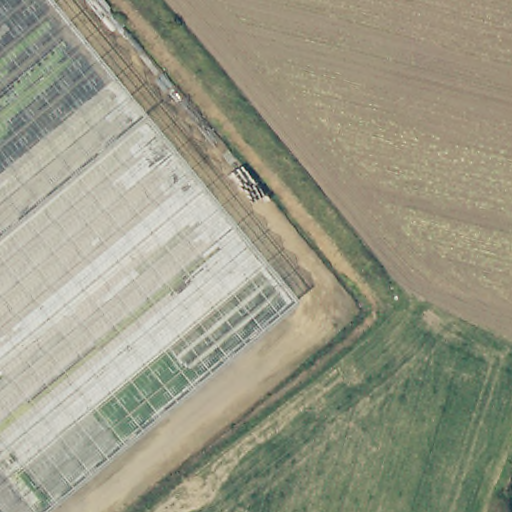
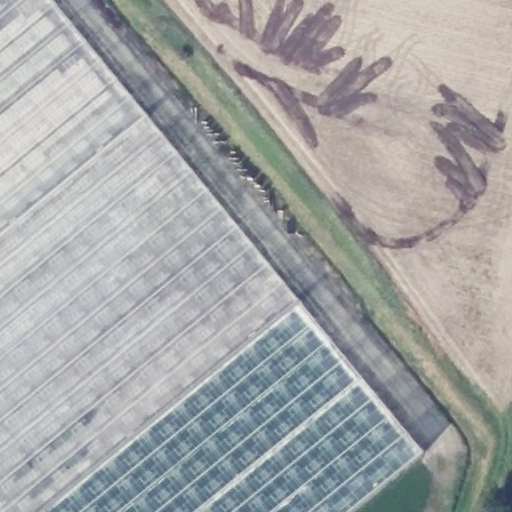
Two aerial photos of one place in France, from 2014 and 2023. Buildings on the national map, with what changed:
unchanged [(33,0),(139,132),(0,242),(0,0),(33,0)]
unchanged [(139,132),(290,318),(50,512),(0,512),(0,242),(139,132)]
new [(303,307),(422,452),(350,512),(50,512),(290,318),(303,307)]

